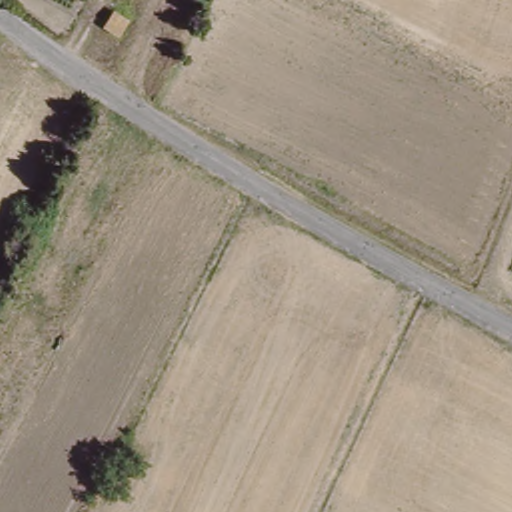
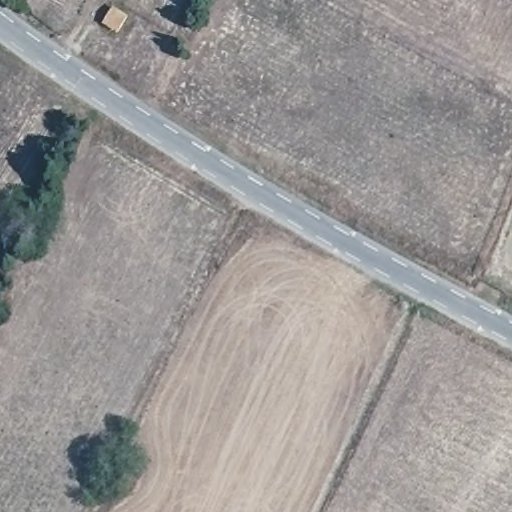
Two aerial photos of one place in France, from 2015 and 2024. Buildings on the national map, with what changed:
unchanged [(112,3),(114,0),(130,0),(125,10),(112,3)]
unchanged [(130,19),(122,38),(105,29),(113,10),(130,19)]

